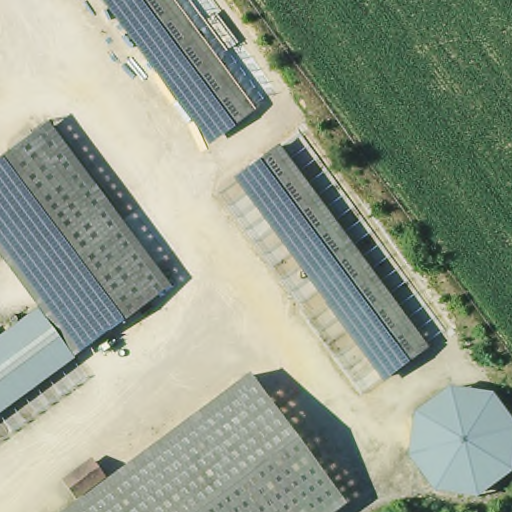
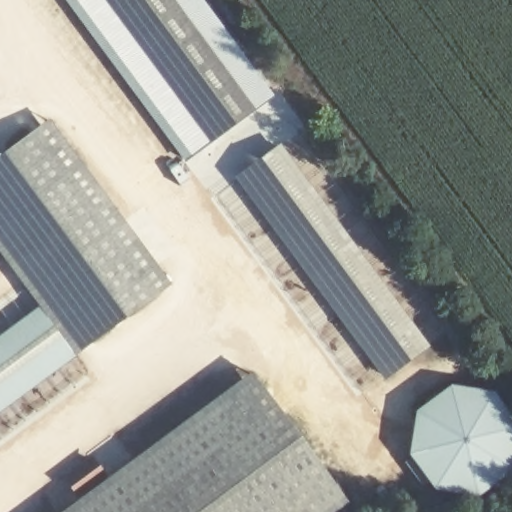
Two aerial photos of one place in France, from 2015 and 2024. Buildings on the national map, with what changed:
new [(185,161),(66,0),(107,0),(212,140),(185,161)]
unchanged [(212,140),(107,0),(173,0),(254,109),(212,140)]
new [(254,109),(173,0),(203,0),(274,95),(254,109)]
unchanged [(53,127),(172,290),(156,302),(36,138),(53,127)]
unchanged [(95,347),(0,218),(0,164),(36,138),(156,302),(95,347)]
unchanged [(282,149),(428,346),(387,377),(241,179),(282,149)]
unchanged [(95,347),(75,362),(41,316),(0,259),(0,218),(95,347)]
unchanged [(41,316),(75,362),(37,390),(1,345),(41,316)]
unchanged [(37,390),(0,417),(0,346),(1,345),(37,390)]
unchanged [(349,508),(343,512),(127,512),(107,486),(253,380),(349,508)]
unchanged [(414,453),(419,416),(448,393),(487,400),(509,429),(503,467),(473,489),(436,483),(414,453)]
unchanged [(81,499),(69,482),(92,465),(105,482),(81,499)]
unchanged [(127,512),(72,512),(107,486),(127,512)]

